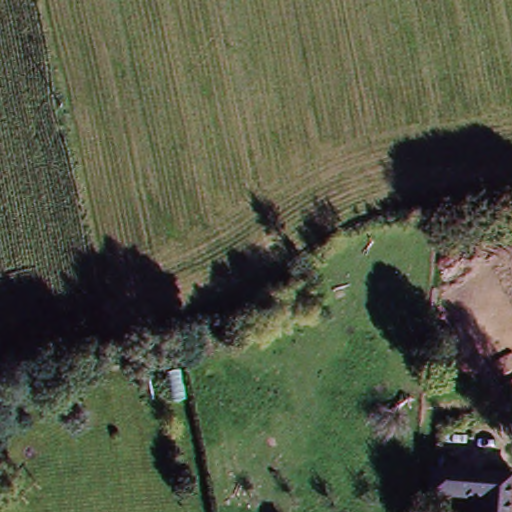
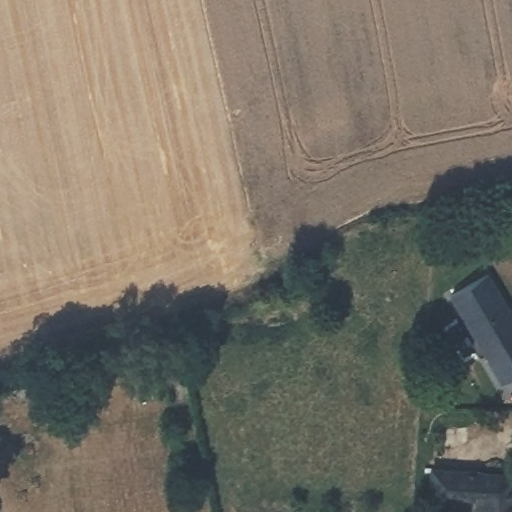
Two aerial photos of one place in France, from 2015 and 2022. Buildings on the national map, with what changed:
new [(489,267),(512,307),(512,374),(505,378),(452,288),(489,267)]
demolished [(456,356),(460,288),(512,292),(512,360),(456,356)]
unchanged [(427,498),(429,470),(457,472),(512,476),(512,488),(510,512),(473,512),(474,501),(454,500),(427,498)]

